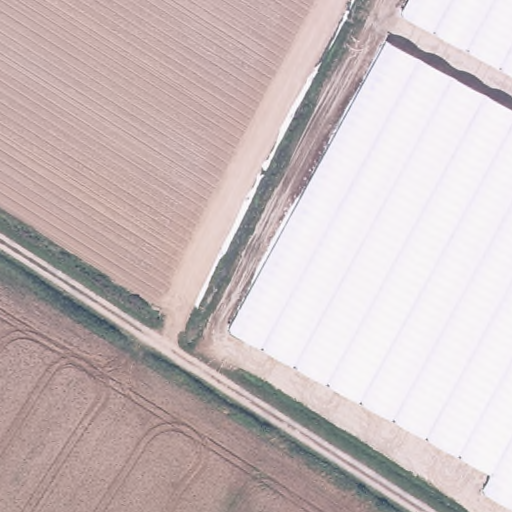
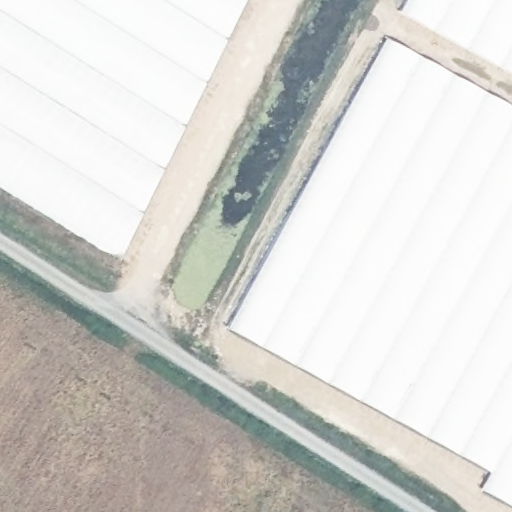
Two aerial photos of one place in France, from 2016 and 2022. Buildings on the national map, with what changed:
new [(0,181),(0,0),(251,0),(125,260),(0,181)]
unchanged [(406,25),(419,0),(512,0),(512,82),(406,25)]
unchanged [(512,118),(512,512),(503,512),(483,501),(492,486),(233,340),(390,52),(512,118)]

